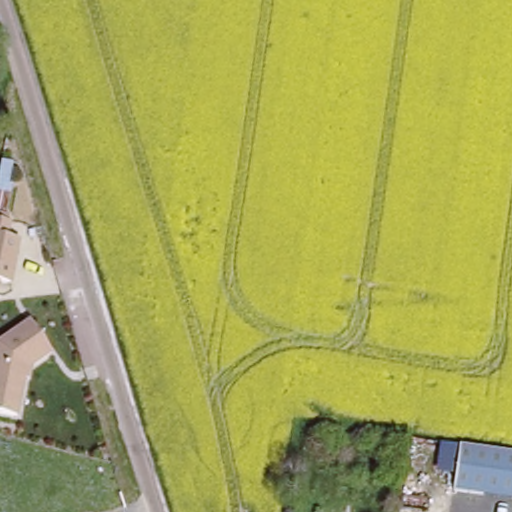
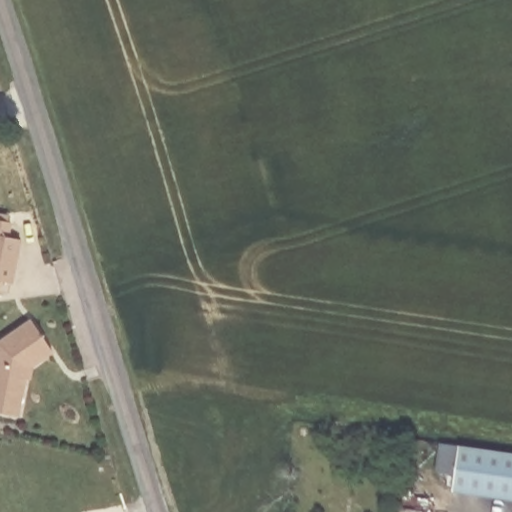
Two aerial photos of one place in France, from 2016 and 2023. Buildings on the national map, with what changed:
unchanged [(11,196),(8,220),(11,223),(8,235),(21,239),(13,285),(1,283),(0,290),(0,193),(11,196)]
unchanged [(53,356),(28,372),(20,419),(0,416),(0,340),(31,321),(53,356)]
unchanged [(459,447),(512,454),(512,499),(454,491),(459,447)]

